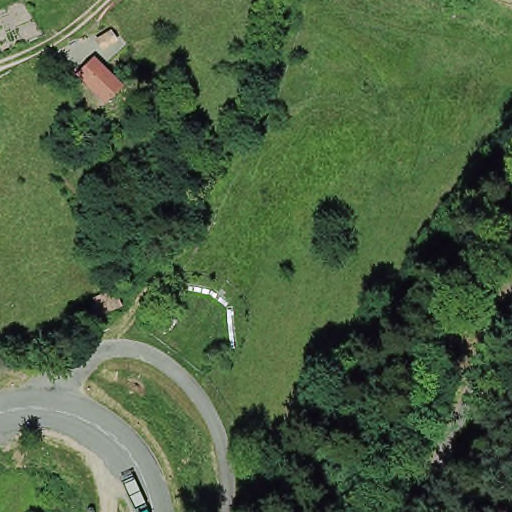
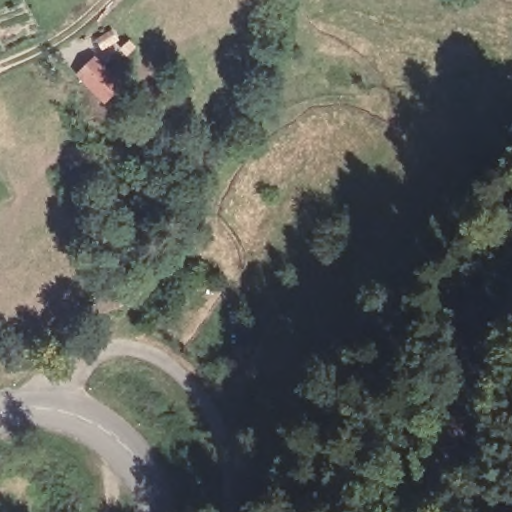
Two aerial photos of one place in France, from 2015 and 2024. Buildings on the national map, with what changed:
unchanged [(90,57),(100,79),(112,70),(125,87),(106,96),(114,105),(88,115),(75,67),(90,57)]
unchanged [(38,307),(66,293),(77,310),(50,326),(38,307)]
unchanged [(103,322),(113,329),(100,347),(86,337),(98,318),(103,322)]

